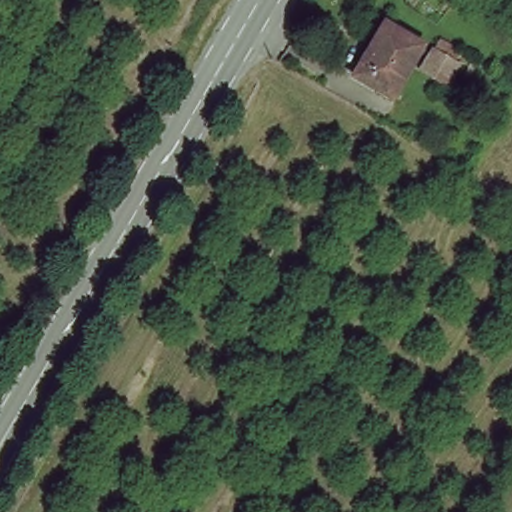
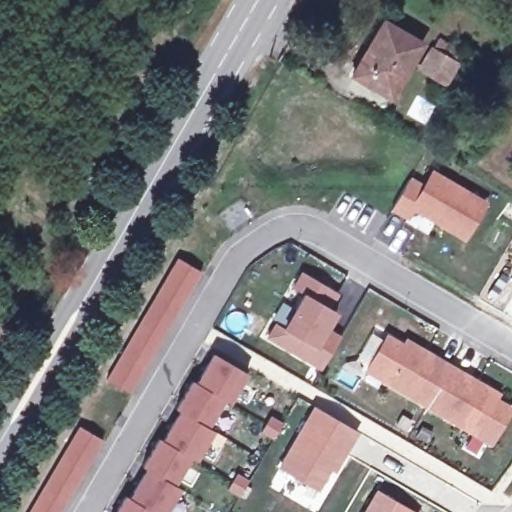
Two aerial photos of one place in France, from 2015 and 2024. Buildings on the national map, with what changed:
unchanged [(389,93),(352,70),(382,16),(420,39),(389,93)]
unchanged [(426,71),(418,66),(431,45),(438,49),(452,58),(440,79),(426,71)]
new [(424,184),(432,169),(490,203),(469,241),(415,210),(410,219),(391,209),(411,176),(424,184)]
new [(202,274),(131,394),(106,381),(176,258),(202,274)]
new [(282,301),(293,307),(301,294),(291,289),(301,270),(343,293),(335,309),(339,311),(329,327),(341,335),(322,372),(265,338),(282,301)]
new [(406,335),(500,392),(498,396),(512,405),(512,413),(492,446),(364,372),(387,332),(403,342),(406,335)]
new [(129,496),(144,469),(141,467),(157,437),(162,440),(178,411),(175,409),(192,380),(197,382),(213,353),(247,373),(231,402),(224,398),(208,427),(215,432),(197,462),(191,458),(175,485),(180,489),(166,512),(115,512),(125,494),(129,496)]
new [(312,403),(360,431),(336,469),(318,492),(277,467),(312,403)]
new [(63,512),(30,512),(80,426),(104,441),(63,512)]
new [(418,512),(360,512),(375,487),(418,512)]

